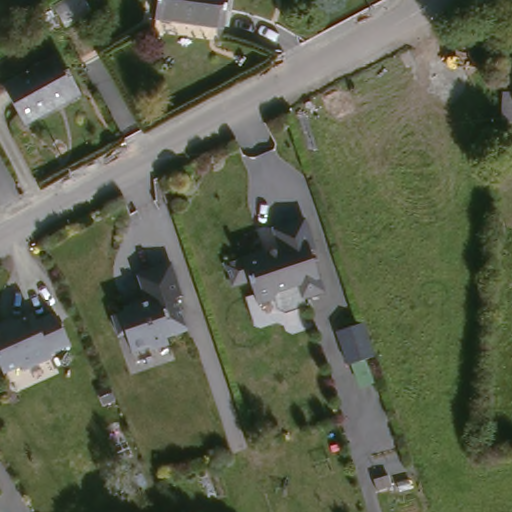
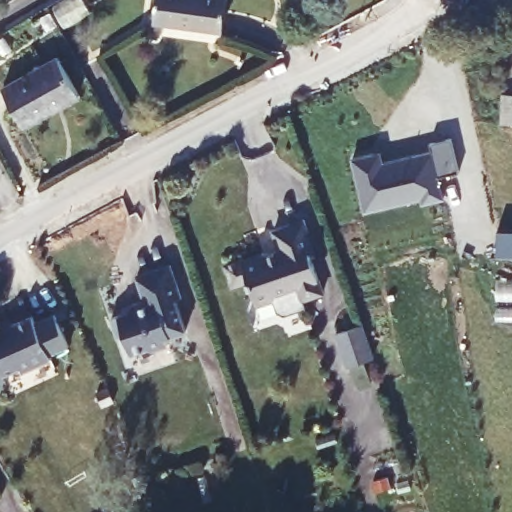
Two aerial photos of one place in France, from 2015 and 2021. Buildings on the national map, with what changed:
unchanged [(153,23),(156,0),(224,0),(219,34),(153,23)]
unchanged [(56,61),(76,100),(22,128),(4,90),(56,61)]
new [(458,170),(439,174),(445,198),(422,203),(421,198),(365,212),(352,156),(381,149),(384,161),(432,150),(431,143),(451,138),(458,170)]
unchanged [(266,258),(267,260),(282,254),(275,236),(305,224),(317,254),(312,256),(327,297),(305,304),(300,290),(282,298),(278,304),(261,310),(253,287),(235,294),(227,272),(266,258)]
new [(497,255),(497,228),(512,228),(512,255),(497,255)]
unchanged [(183,300),(177,302),(188,337),(168,344),(170,352),(155,358),(152,354),(136,361),(129,342),(122,344),(116,324),(132,318),(135,310),(148,305),(140,280),(173,268),(183,300)]
unchanged [(59,316),(73,350),(54,358),(56,361),(28,372),(25,366),(8,373),(0,357),(0,328),(7,324),(13,328),(38,317),(41,324),(59,316)]
unchanged [(359,327),(371,361),(346,369),(335,335),(359,327)]
unchanged [(120,386),(125,401),(114,405),(108,391),(120,386)]

